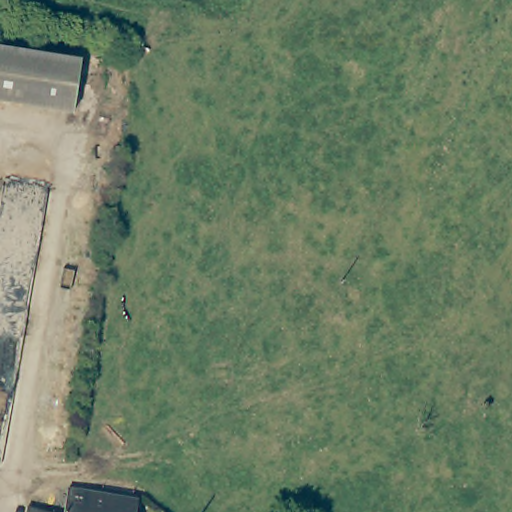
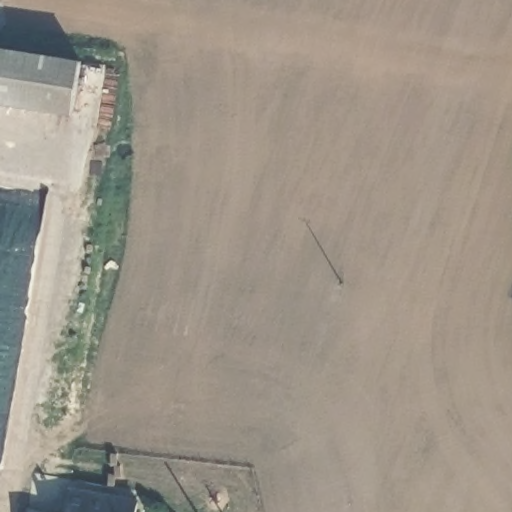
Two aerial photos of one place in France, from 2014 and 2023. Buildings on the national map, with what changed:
unchanged [(79,118),(0,98),(0,44),(91,66),(79,118)]
unchanged [(26,502),(65,508),(69,484),(139,495),(136,512),(25,512),(26,502)]

